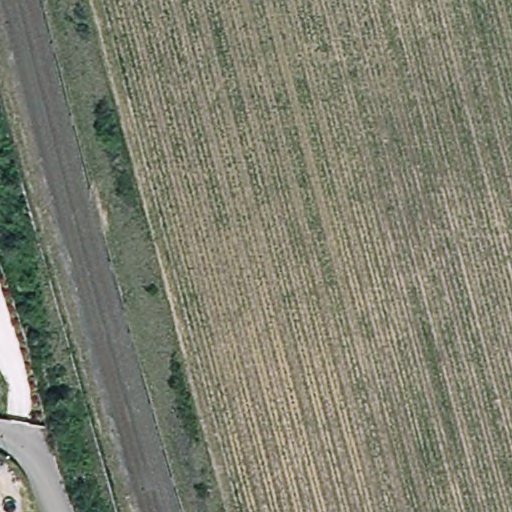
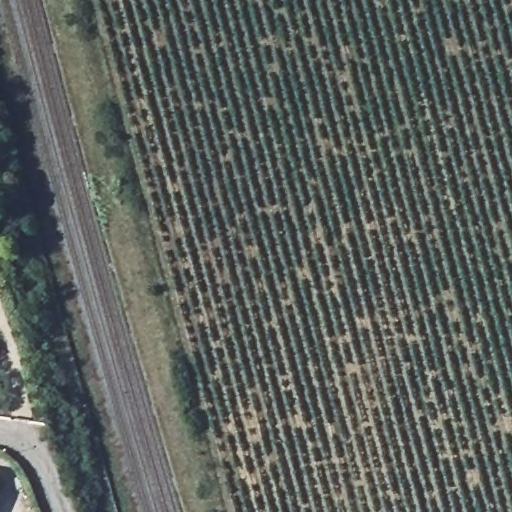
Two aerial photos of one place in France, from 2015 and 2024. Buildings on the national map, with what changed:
unchanged [(0,508),(0,477),(5,478),(0,508)]

